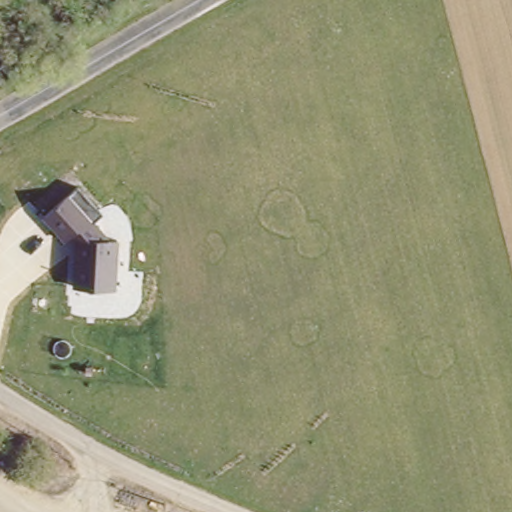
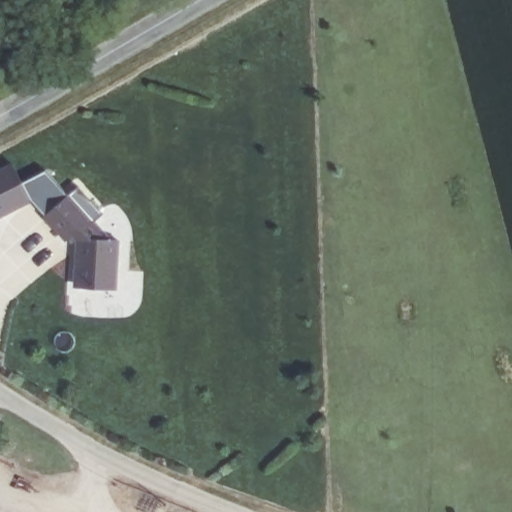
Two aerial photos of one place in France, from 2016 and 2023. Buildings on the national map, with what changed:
new [(0,216),(0,169),(11,163),(21,185),(44,172),(66,195),(45,211),(30,202),(0,216)]
unchanged [(81,184),(104,213),(94,221),(107,239),(116,240),(110,290),(75,286),(81,236),(76,229),(65,237),(45,211),(81,184)]

